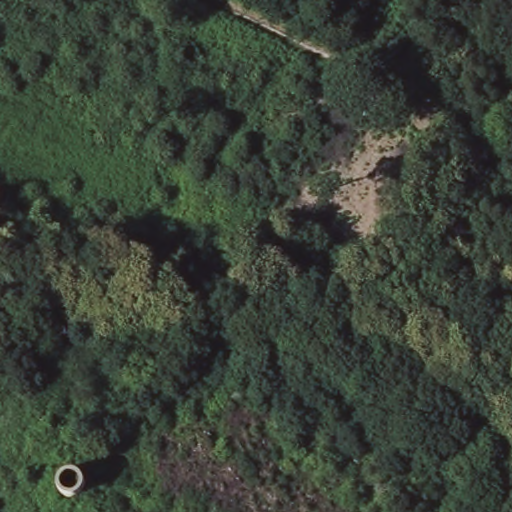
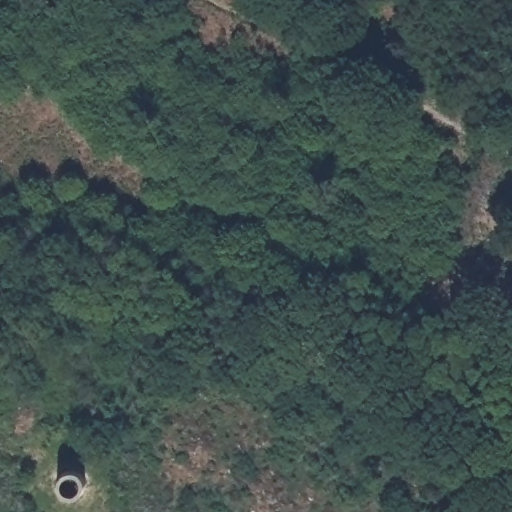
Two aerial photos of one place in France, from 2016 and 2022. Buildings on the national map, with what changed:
unchanged [(82,470),(89,477),(89,488),(82,497),(72,497),(64,493),(62,485),(65,477),(68,474),(74,470),(82,470)]

